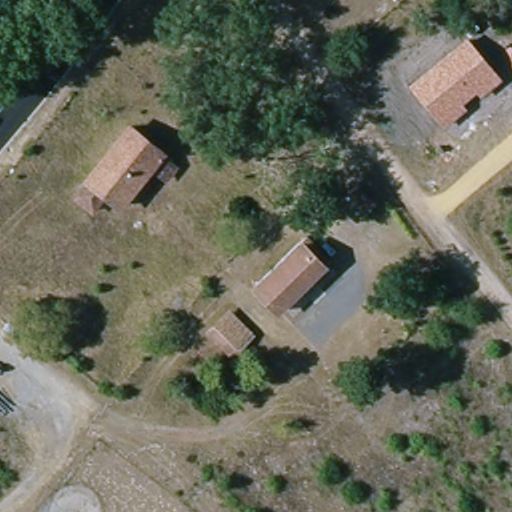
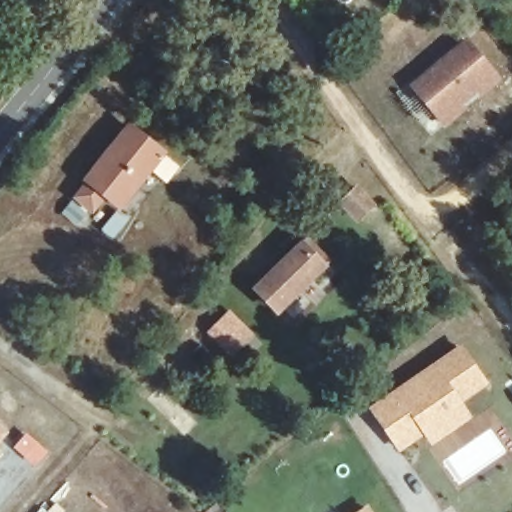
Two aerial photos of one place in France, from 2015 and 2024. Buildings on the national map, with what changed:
unchanged [(502,83),(480,100),(476,96),(465,104),(470,110),(443,131),(409,87),(466,40),(502,83)]
unchanged [(178,166),(164,183),(150,171),(122,206),(109,195),(96,211),(79,196),(90,183),(87,181),(131,127),(164,154),(178,166)]
demolished [(341,213),(365,188),(381,208),(359,232),(341,213)]
unchanged [(302,245),(325,269),(281,312),(257,288),(292,254),(302,245)]
unchanged [(219,336),(229,324),(232,327),(236,323),(241,328),(237,332),(248,343),(237,354),(219,336)]
new [(489,385),(463,401),(472,417),(433,445),(426,436),(401,455),(368,408),(461,344),(489,385)]
new [(0,442),(0,424),(10,432),(0,442)]
new [(358,512),(368,506),(372,512),(358,512)]

